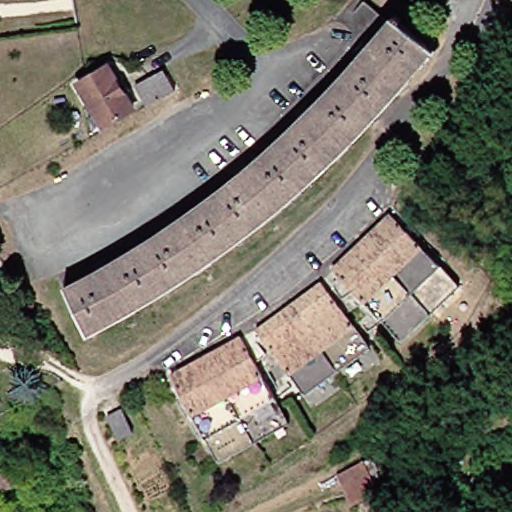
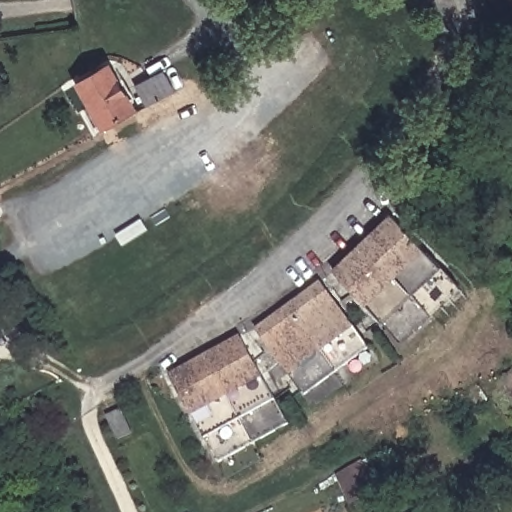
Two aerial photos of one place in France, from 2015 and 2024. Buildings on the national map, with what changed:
unchanged [(512,0),(512,1),(511,0),(512,0)]
demolished [(298,120),(345,66),(382,20),(422,53),(359,129),(325,166),(291,195),(253,160),(298,120)]
unchanged [(100,129),(75,87),(105,69),(130,111),(100,129)]
unchanged [(142,105),(131,85),(155,73),(165,91),(142,105)]
demolished [(162,227),(227,181),(253,160),(291,195),(279,206),(227,245),(178,276),(149,235),(162,227)]
unchanged [(400,342),(335,278),(386,220),(455,285),(400,342)]
demolished [(178,276),(168,283),(84,330),(61,287),(132,246),(149,235),(178,276)]
unchanged [(303,392),(256,329),(318,286),(366,347),(303,392)]
unchanged [(214,460),(170,375),(238,338),(285,423),(214,460)]
unchanged [(123,405),(134,427),(119,435),(108,412),(123,405)]
unchanged [(336,480),(375,461),(387,480),(350,505),(336,480)]
unchanged [(22,479),(6,488),(0,478),(0,472),(15,465),(22,479)]

